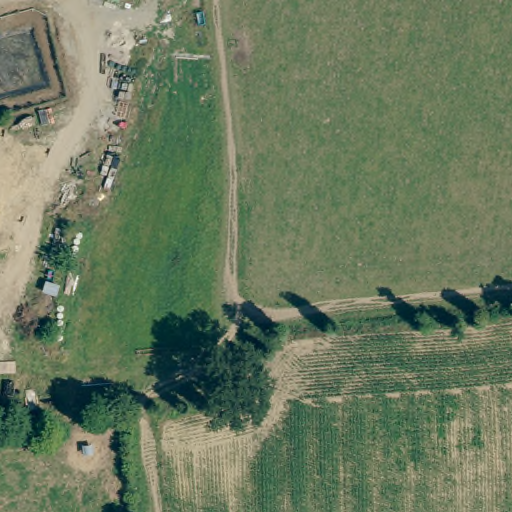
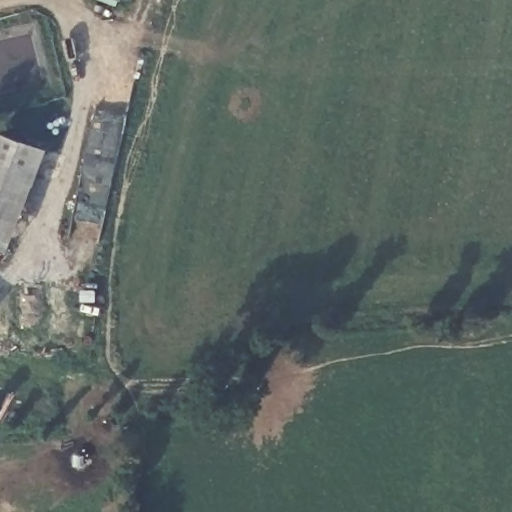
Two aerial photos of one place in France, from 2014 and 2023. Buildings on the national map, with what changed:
new [(11,251),(0,248),(0,131),(50,149),(11,251)]

